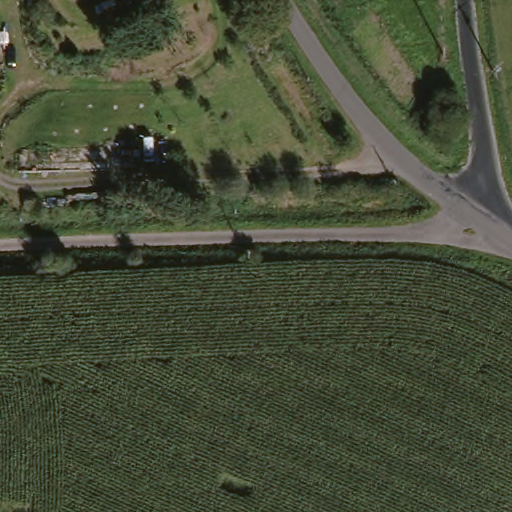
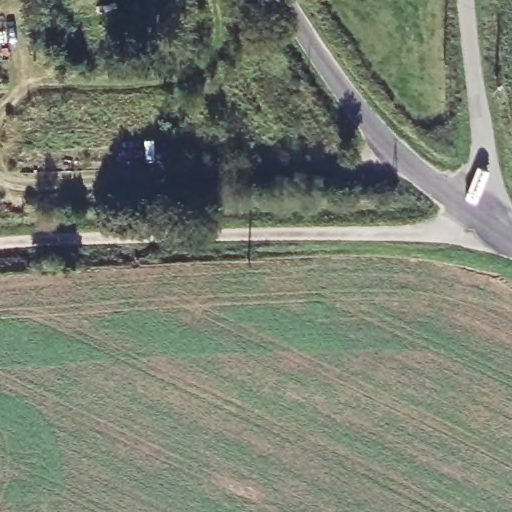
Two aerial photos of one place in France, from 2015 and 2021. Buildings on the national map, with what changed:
unchanged [(0,211),(0,179),(1,179),(2,211),(0,211)]

